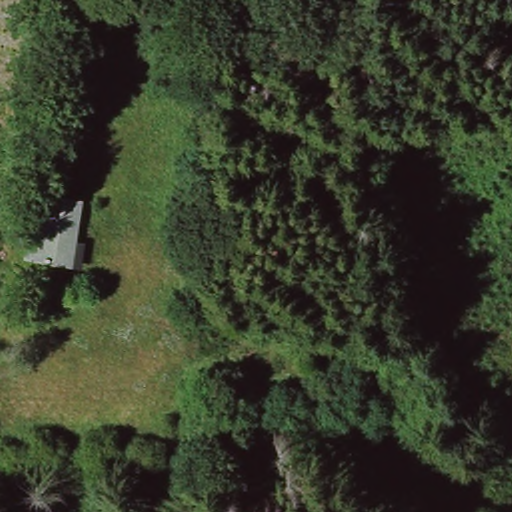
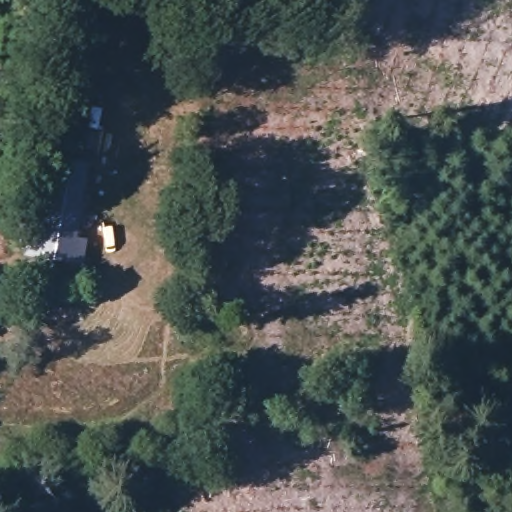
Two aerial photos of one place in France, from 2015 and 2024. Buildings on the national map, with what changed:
unchanged [(70,270),(17,265),(26,189),(81,198),(70,270)]

